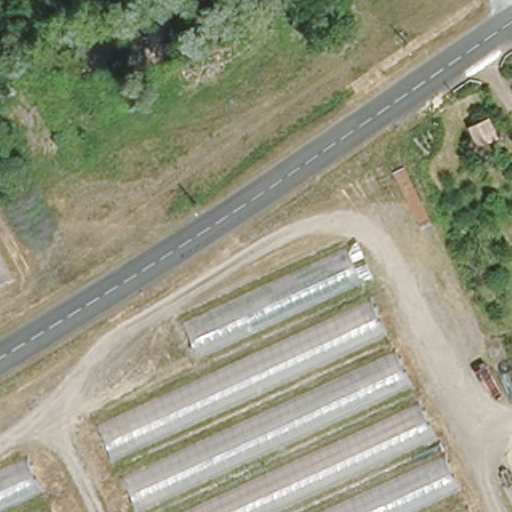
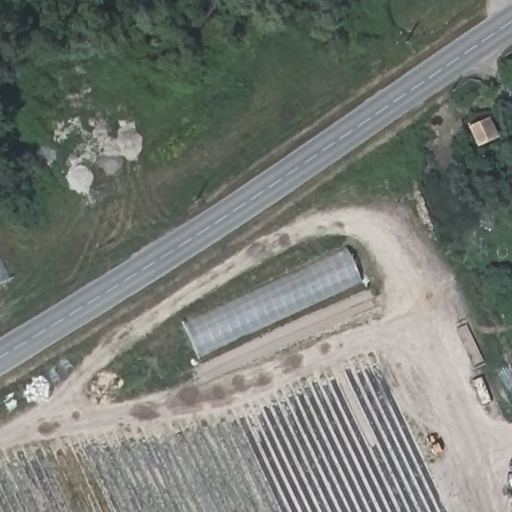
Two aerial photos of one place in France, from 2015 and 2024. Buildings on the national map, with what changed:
unchanged [(511,134),(497,144),(486,129),(500,119),(511,134)]
demolished [(202,379),(182,321),(347,247),(471,512),(138,512),(99,428),(202,379)]
unchanged [(0,285),(0,254),(12,278),(0,285)]
demolished [(53,512),(0,512),(0,473),(29,460),(53,512)]

